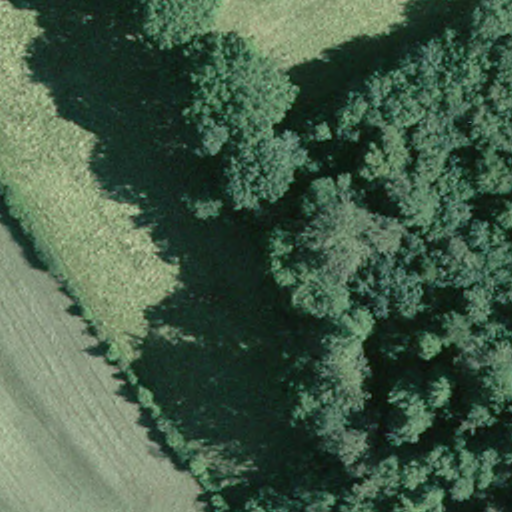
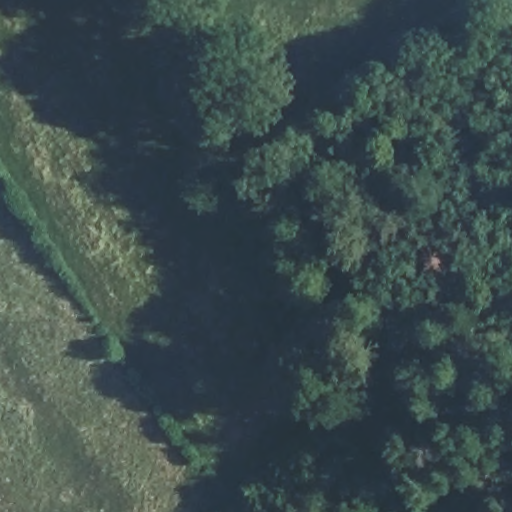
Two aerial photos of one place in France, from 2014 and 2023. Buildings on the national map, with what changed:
[]

